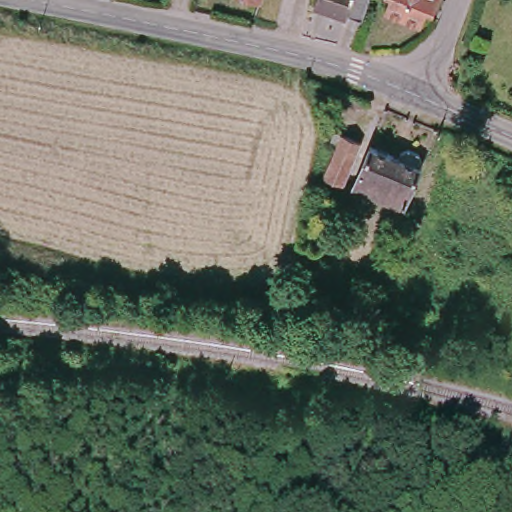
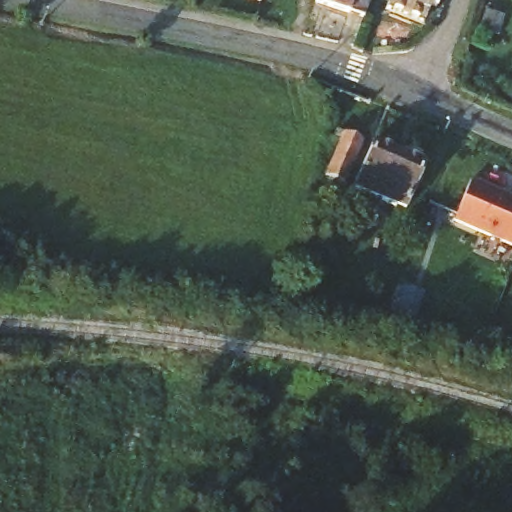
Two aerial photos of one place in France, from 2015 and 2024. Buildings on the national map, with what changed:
unchanged [(313,0),(365,0),(360,16),(313,0)]
unchanged [(434,12),(425,10),(421,25),(384,12),(387,0),(438,0),(434,12)]
unchanged [(360,137),(344,182),(324,174),(334,144),(326,142),(333,126),(360,137)]
unchanged [(398,153),(400,147),(406,143),(419,149),(422,155),(419,163),(422,164),(404,207),(353,186),(369,140),(398,153)]
new [(512,245),(453,221),(469,183),(512,201),(512,245)]

